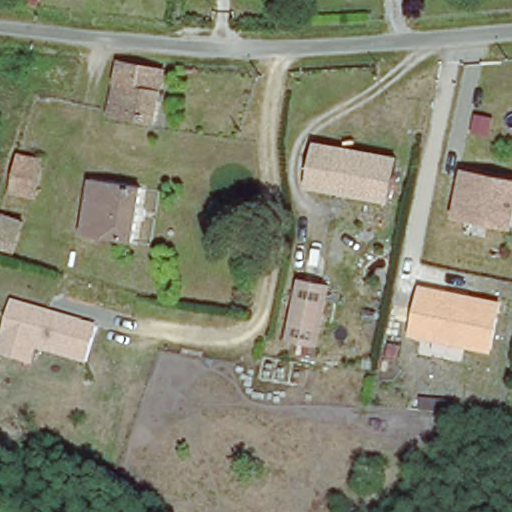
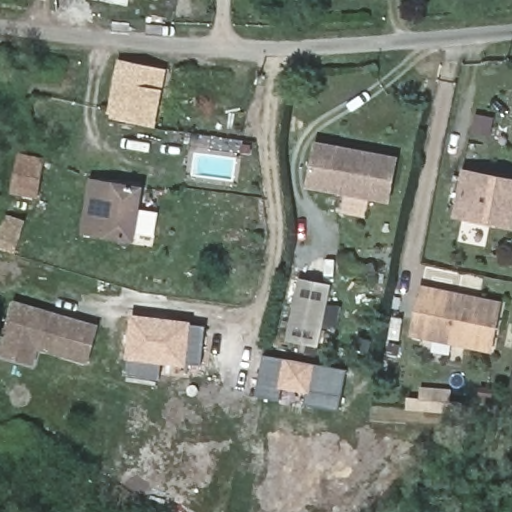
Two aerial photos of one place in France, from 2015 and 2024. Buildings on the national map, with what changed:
unchanged [(107,121),(110,105),(116,63),(161,68),(154,113),(151,127),(107,121)]
unchanged [(334,194),(310,189),(319,145),(342,149),(334,194)]
unchanged [(383,203),(334,194),(342,149),(393,158),(383,203)]
unchanged [(8,215),(14,198),(6,196),(14,154),(46,160),(38,201),(32,201),(11,256),(0,251),(0,218),(2,212),(8,215)]
unchanged [(510,228),(456,212),(467,175),(469,170),(500,179),(512,182),(512,219),(510,228)]
unchanged [(143,185),(134,244),(86,237),(95,176),(143,185)]
unchanged [(321,347),(284,343),(297,280),(330,284),(321,347)]
unchanged [(491,353),(409,336),(419,285),(502,301),(491,353)]
unchanged [(0,356),(0,345),(14,301),(96,326),(87,365),(40,351),(34,367),(0,356)]
new [(125,361),(130,315),(191,321),(192,325),(205,326),(200,366),(161,365),(159,380),(129,376),(130,361),(125,361)]
new [(256,395),(264,357),(345,371),(338,407),(305,404),(307,394),(282,390),(280,400),(256,395)]
new [(450,414),(409,411),(410,398),(418,398),(418,387),(452,389),(450,403),(450,414)]

